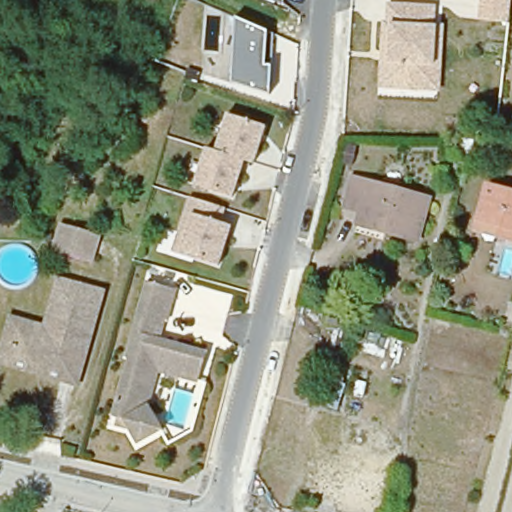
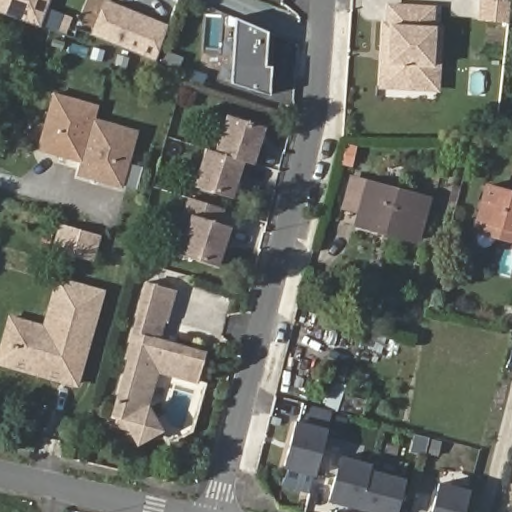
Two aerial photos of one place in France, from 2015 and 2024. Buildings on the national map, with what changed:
new [(0,0),(50,0),(40,27),(5,14),(0,12),(0,0)]
new [(510,24),(486,21),(481,20),(484,0),(512,0),(512,7),(510,24)]
unchanged [(430,7),(429,25),(432,25),(430,64),(426,64),(416,72),(415,86),(378,83),(380,59),(385,60),(386,47),(381,47),(382,21),(386,22),(387,4),(430,7)]
new [(106,5),(168,28),(156,62),(94,39),(106,5)]
unchanged [(235,87),(237,17),(273,34),(272,94),(235,87)]
unchanged [(443,25),(440,92),(378,89),(378,83),(415,86),(416,72),(426,64),(430,64),(432,25),(443,25)]
new [(80,164),(36,152),(53,92),(96,105),(93,119),(80,164)]
unchanged [(255,166),(242,162),(232,198),(193,186),(204,147),(216,150),(227,115),(267,127),(255,166)]
new [(122,188),(77,175),(80,164),(93,119),(138,131),(122,188)]
unchanged [(409,240),(349,222),(353,211),(338,205),(345,176),(421,198),(409,240)]
unchanged [(473,227),(485,185),(512,193),(512,239),(473,227)]
unchanged [(172,252),(188,197),(228,208),(223,222),(233,227),(220,266),(172,252)]
unchanged [(95,235),(89,256),(53,246),(58,225),(95,235)]
unchanged [(47,328),(59,282),(104,295),(78,387),(61,382),(63,372),(13,357),(23,322),(47,328)]
unchanged [(169,292),(160,322),(158,322),(153,341),(199,353),(191,384),(152,373),(142,407),(156,432),(132,446),(123,432),(109,427),(111,420),(106,418),(122,360),(119,360),(140,284),(169,292)]
unchanged [(23,322),(13,357),(63,372),(61,382),(0,364),(0,351),(8,317),(9,317),(23,322)]
unchanged [(336,383),(340,387),(334,407),(325,406),(331,382),(336,383)]
demolished [(369,447),(342,441),(348,412),(362,415),(360,426),(374,430),(369,447)]
new [(283,468),(294,421),(325,428),(313,476),(283,468)]
new [(328,501),(340,453),(373,462),(371,469),(360,509),(328,501)]
demolished [(378,510),(305,495),(311,461),(350,468),(352,460),(370,462),(369,472),(385,475),(378,510)]
new [(405,478),(396,512),(371,512),(360,509),(371,469),(405,478)]
new [(470,491),(464,512),(429,512),(437,482),(470,491)]

